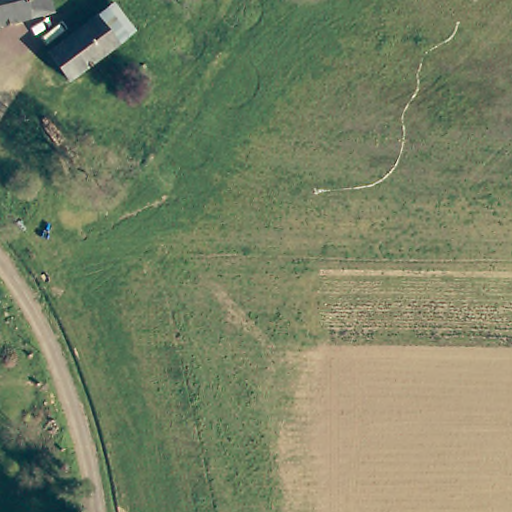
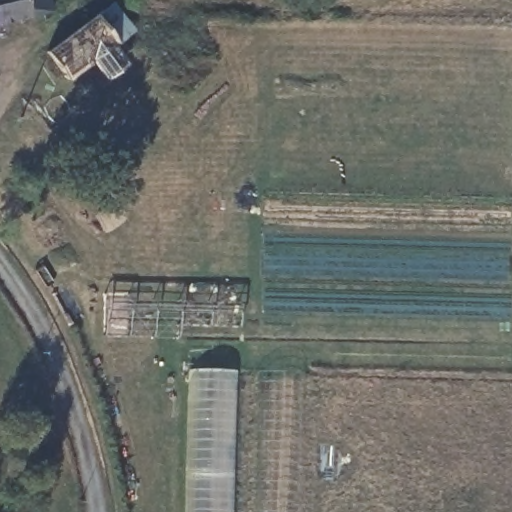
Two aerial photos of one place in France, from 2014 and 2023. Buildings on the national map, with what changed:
unchanged [(0,26),(0,0),(48,0),(51,13),(0,26)]
unchanged [(46,54),(48,51),(95,17),(111,6),(134,33),(115,46),(66,80),(46,54)]
new [(233,371),(229,512),(191,512),(194,369),(233,371)]

